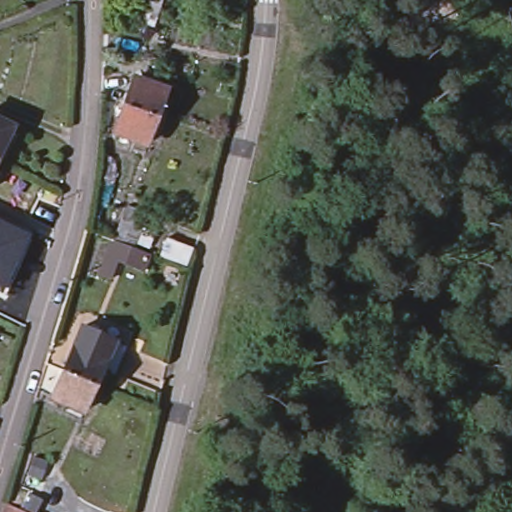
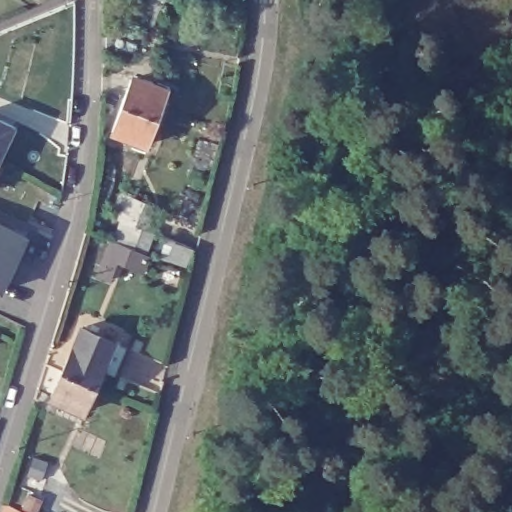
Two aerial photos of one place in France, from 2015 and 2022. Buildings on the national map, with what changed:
unchanged [(145,12),(135,9),(139,0),(149,0),(145,12)]
unchanged [(512,5),(512,33),(510,33),(503,7),(512,5)]
unchanged [(127,77),(162,90),(158,100),(163,101),(157,117),(117,102),(127,77)]
unchanged [(157,117),(152,134),(147,131),(143,141),(108,127),(117,102),(157,117)]
unchanged [(0,157),(0,122),(13,129),(0,157)]
unchanged [(144,273),(117,263),(115,266),(110,282),(97,278),(103,261),(106,262),(113,243),(122,222),(128,205),(160,215),(150,246),(137,242),(133,250),(150,256),(144,273)]
unchanged [(1,295),(0,294),(0,224),(27,236),(1,295)]
unchanged [(62,373),(72,348),(81,329),(115,344),(127,349),(115,377),(107,375),(100,390),(62,373)]
unchanged [(100,390),(93,406),(89,404),(85,413),(51,398),(62,373),(100,390)]
unchanged [(28,492),(37,496),(30,512),(3,512),(5,505),(20,511),(28,492)]

